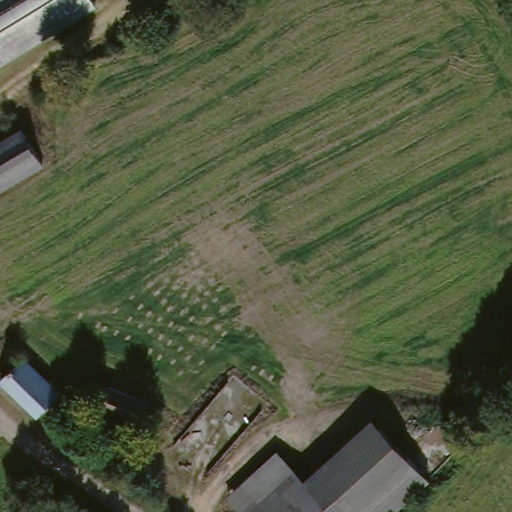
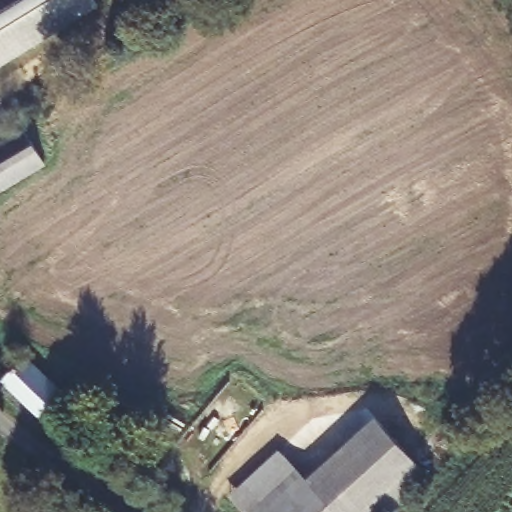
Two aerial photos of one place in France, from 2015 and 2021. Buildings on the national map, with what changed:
unchanged [(96,5),(0,63),(0,0),(93,0),(96,5)]
unchanged [(22,136),(42,173),(0,196),(0,148),(22,136)]
unchanged [(53,393),(65,403),(44,424),(4,390),(25,370),(53,393)]
unchanged [(142,401),(133,417),(105,403),(103,401),(100,399),(109,383),(142,401)]
unchanged [(303,480),(367,420),(432,483),(400,512),(236,512),(223,499),(274,452),(303,480)]

